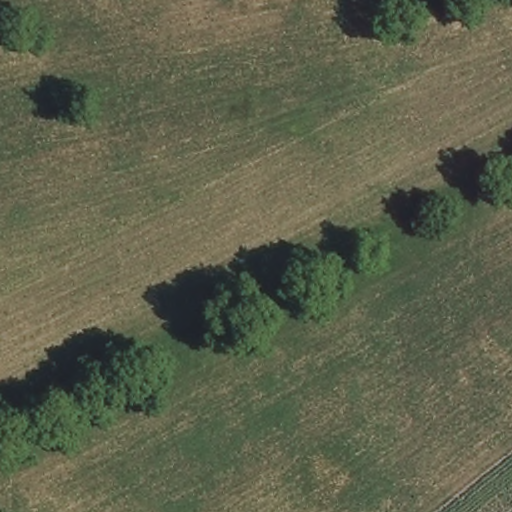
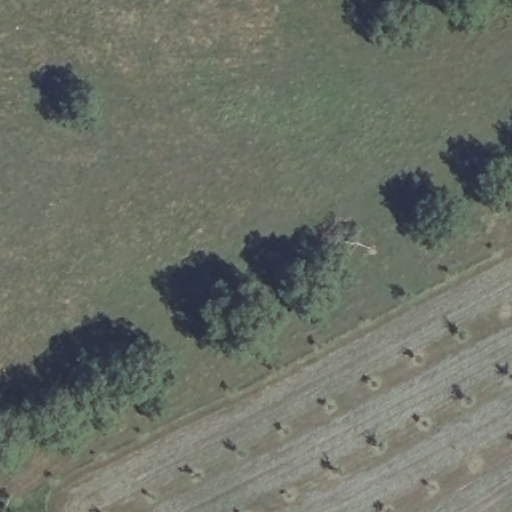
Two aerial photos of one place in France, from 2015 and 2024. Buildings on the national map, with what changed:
[]

